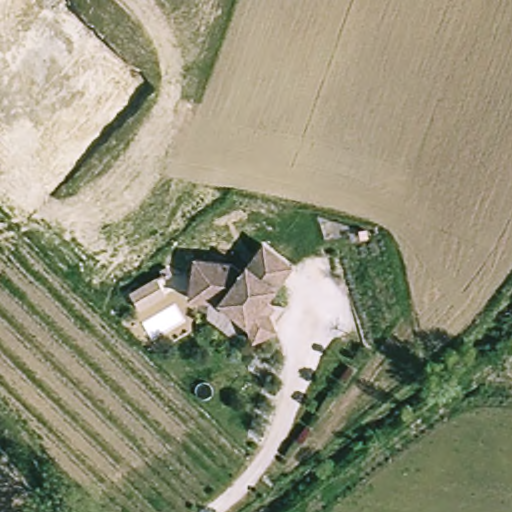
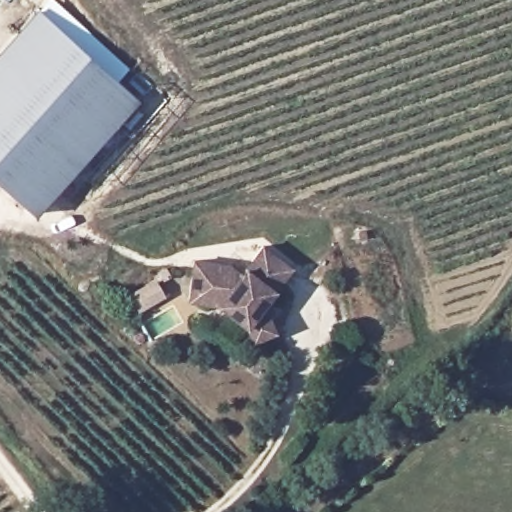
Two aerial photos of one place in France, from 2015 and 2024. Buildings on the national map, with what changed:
new [(38,8),(137,98),(34,215),(0,184),(0,51),(38,8)]
unchanged [(256,328),(220,307),(191,305),(195,266),(232,270),(242,278),(260,247),(293,265),(267,306),(276,314),(283,329),(261,342),(256,328)]

